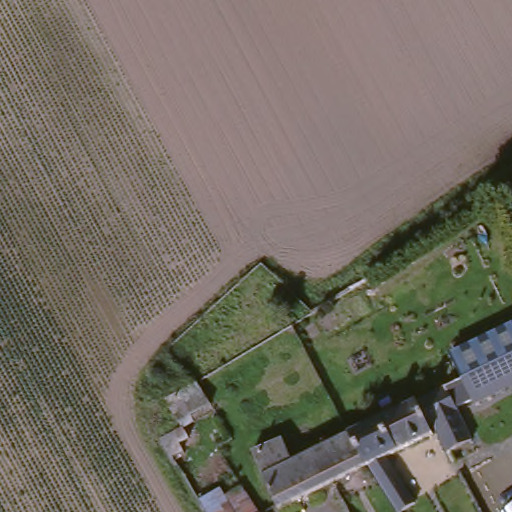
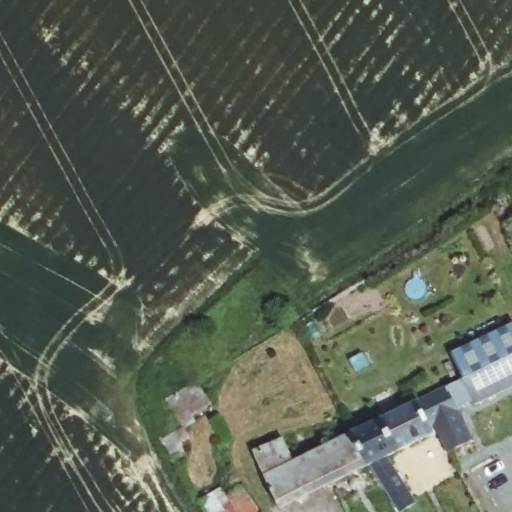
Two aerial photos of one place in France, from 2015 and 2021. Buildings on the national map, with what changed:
unchanged [(297,456),(354,430),(350,423),(407,395),(414,405),(449,387),(447,383),(459,376),(457,352),(512,326),(512,375),(507,377),(511,388),(479,403),(476,395),(459,405),(475,441),(453,454),(439,432),(394,456),(424,500),(400,512),(370,470),(288,505),(254,445),(282,431),(297,456)]
unchanged [(227,499),(246,490),(260,512),(208,512),(205,507),(198,495),(219,483),(227,499)]

